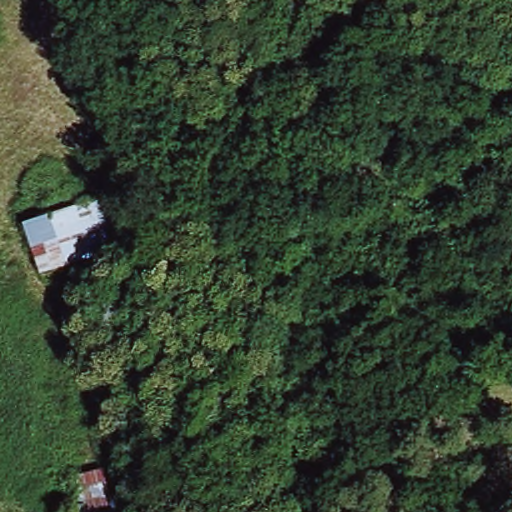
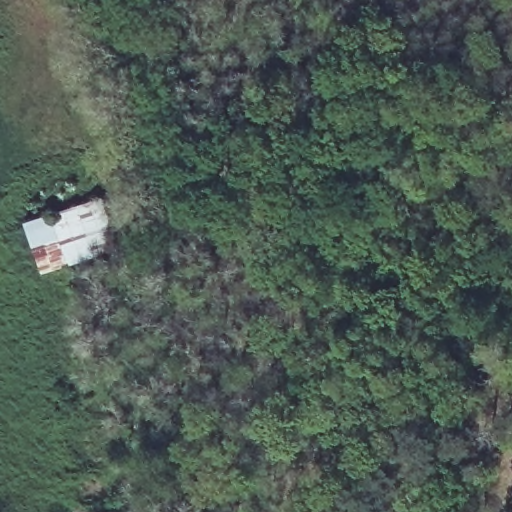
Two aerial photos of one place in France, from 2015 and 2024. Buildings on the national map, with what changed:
unchanged [(95,192),(115,245),(45,270),(28,216),(95,192)]
unchanged [(140,485),(137,512),(76,512),(76,473),(140,485)]

